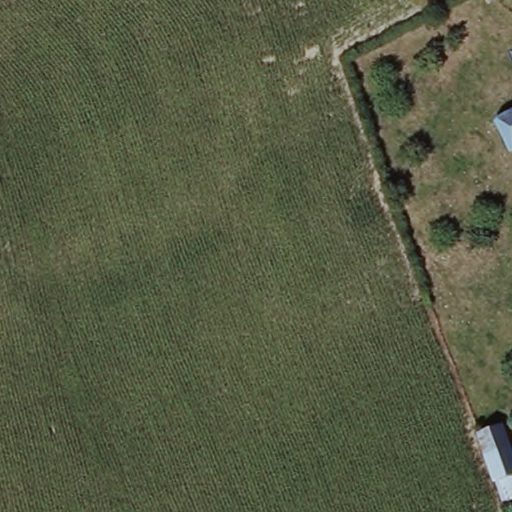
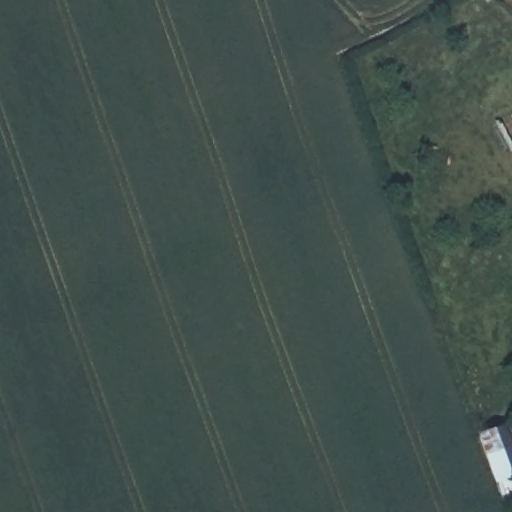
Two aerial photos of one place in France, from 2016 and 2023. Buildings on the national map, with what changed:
unchanged [(512,120),(512,154),(501,131),(500,127),(512,120)]
unchanged [(512,450),(512,483),(499,488),(483,440),(504,429),(512,450)]
unchanged [(512,483),(512,512),(508,512),(499,488),(512,483)]

